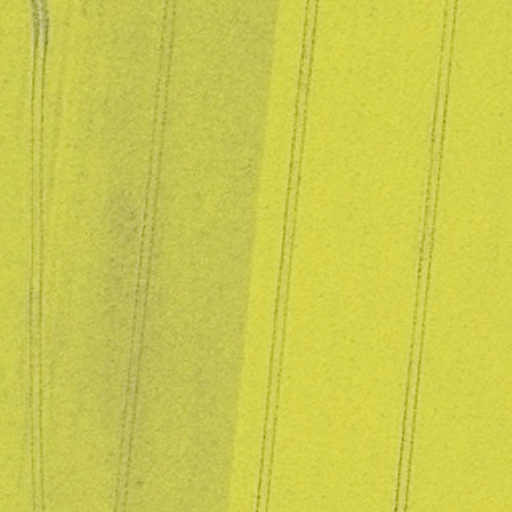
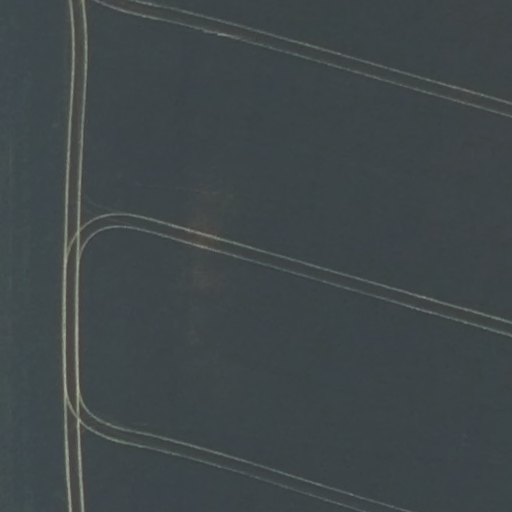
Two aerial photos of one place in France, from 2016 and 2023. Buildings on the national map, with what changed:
[]

